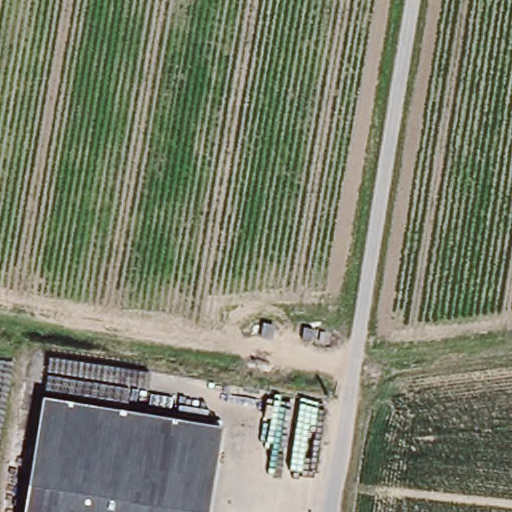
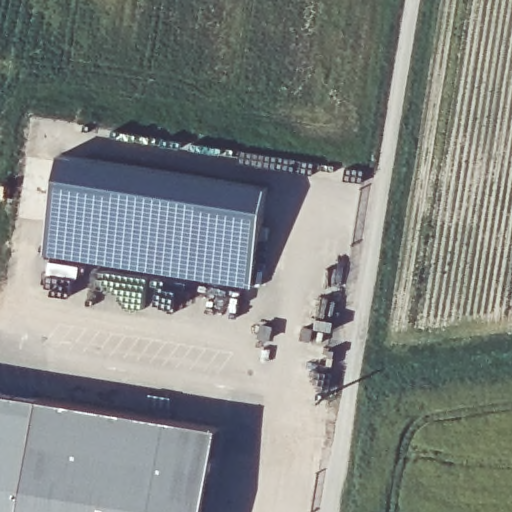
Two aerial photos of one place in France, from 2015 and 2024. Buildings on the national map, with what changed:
new [(60,144),(287,181),(268,300),(41,263),(60,144)]
unchanged [(0,393),(163,417),(151,512),(0,512),(0,393)]
unchanged [(212,423),(201,512),(151,512),(163,417),(212,423)]

